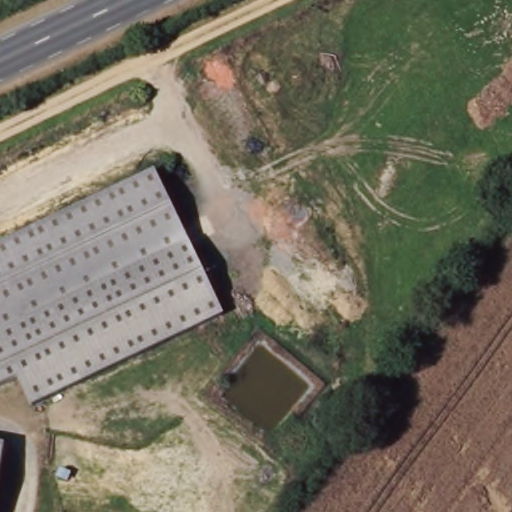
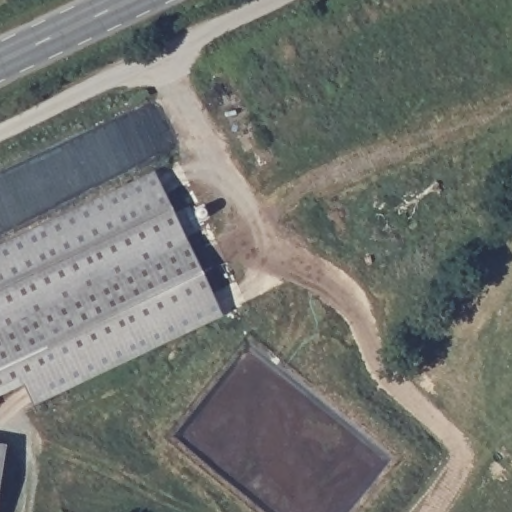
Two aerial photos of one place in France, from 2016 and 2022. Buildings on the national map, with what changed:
unchanged [(154,176),(172,215),(173,215),(181,232),(0,318),(0,249),(154,176)]
unchanged [(181,232),(221,319),(31,415),(14,384),(0,391),(0,318),(181,232)]
unchanged [(6,447),(0,481),(0,446),(6,447)]

